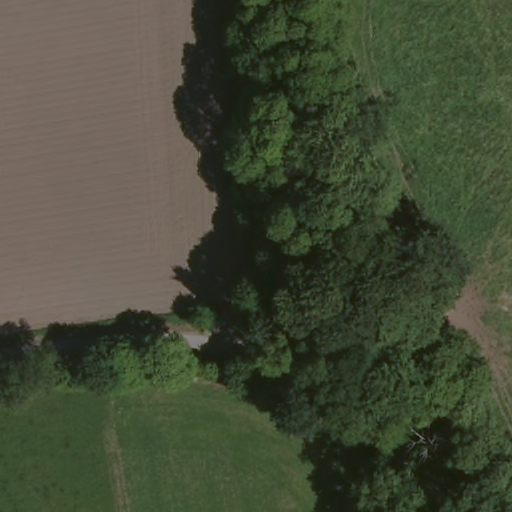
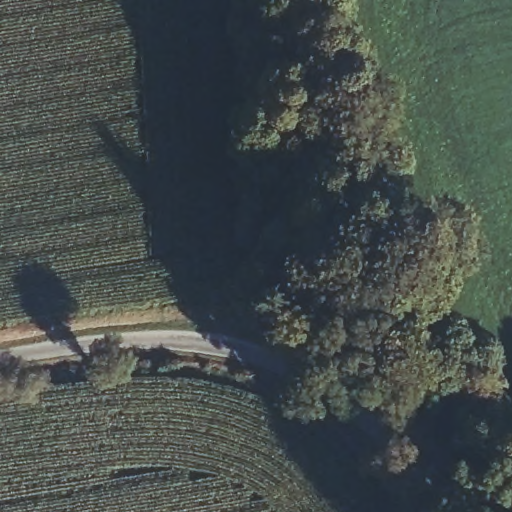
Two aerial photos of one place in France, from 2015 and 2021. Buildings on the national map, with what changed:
[]

